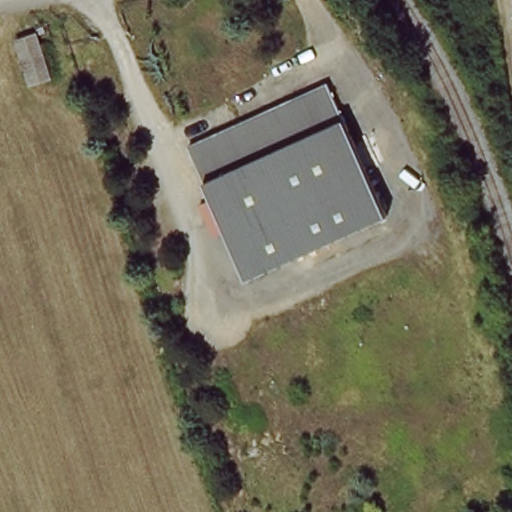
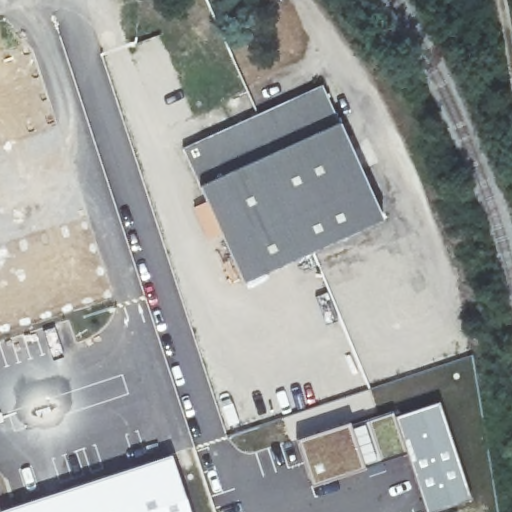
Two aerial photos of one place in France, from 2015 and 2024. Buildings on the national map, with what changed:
demolished [(13,40),(34,33),(49,80),(28,86),(13,40)]
unchanged [(325,85),(385,217),(246,280),(186,147),(325,85)]
demolished [(153,276),(167,271),(176,293),(147,304),(125,242),(139,237),(153,276)]
new [(471,498),(428,512),(426,512),(405,452),(394,415),(439,400),(471,498)]
new [(364,421),(393,412),(394,415),(405,452),(377,461),(364,466),(311,487),(295,438),(349,421),(350,425),(364,421)]
new [(191,512),(0,512),(0,509),(171,453),(191,512)]

